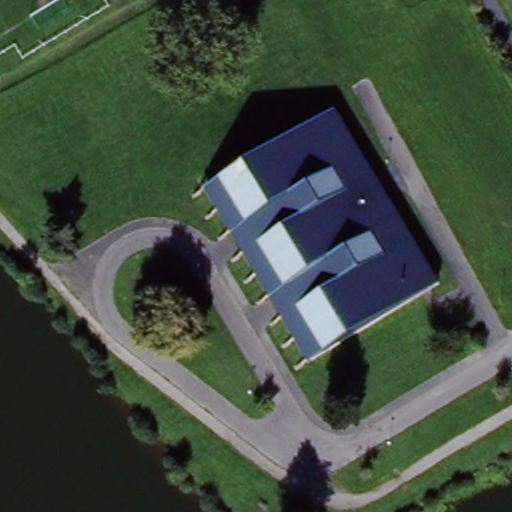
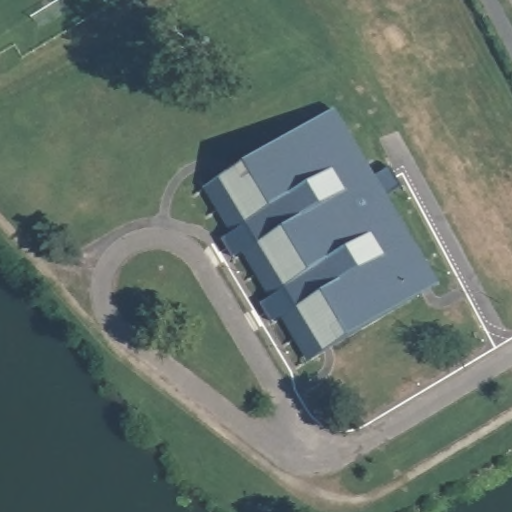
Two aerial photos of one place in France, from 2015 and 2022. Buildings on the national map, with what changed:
unchanged [(438,286),(315,362),(203,191),(327,112),(438,286)]

